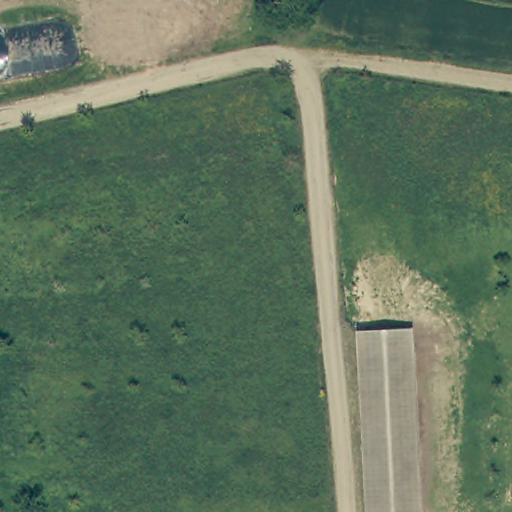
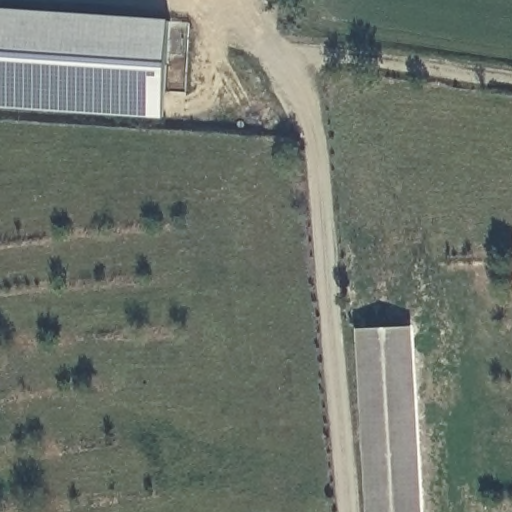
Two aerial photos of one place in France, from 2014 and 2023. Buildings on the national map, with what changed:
new [(164,119),(0,108),(0,9),(170,21),(164,119)]
unchanged [(412,328),(420,512),(372,512),(365,330),(412,328)]

